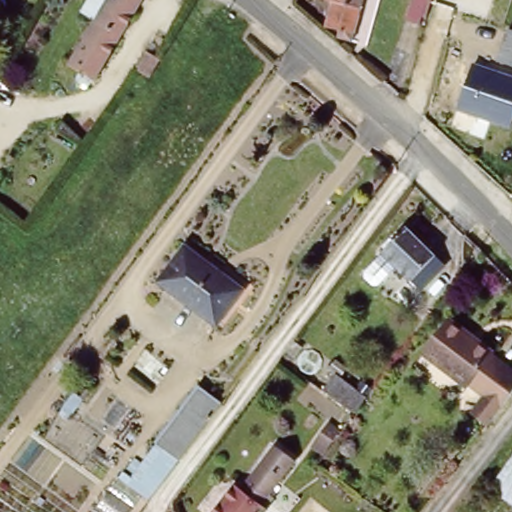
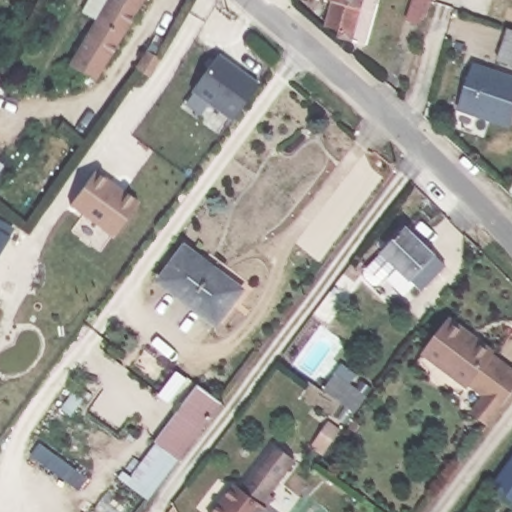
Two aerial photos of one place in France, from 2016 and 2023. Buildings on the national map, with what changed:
unchanged [(96,84),(69,69),(109,0),(146,0),(96,84)]
unchanged [(354,40),(337,35),(339,28),(328,24),(333,0),(363,0),(354,40)]
unchanged [(429,18),(422,17),(419,25),(405,20),(410,0),(434,0),(429,18)]
unchanged [(500,60),(510,27),(512,28),(512,64),(500,60)]
unchanged [(141,71),(135,67),(147,50),(160,58),(148,77),(141,71)]
new [(230,119),(192,90),(219,54),(257,83),(230,119)]
unchanged [(460,101),(472,62),(512,76),(512,120),(511,125),(472,113),(457,108),(460,101)]
new [(111,235),(69,205),(95,170),(137,200),(111,235)]
unchanged [(417,290),(376,251),(401,225),(442,265),(417,290)]
unchanged [(216,275),(232,288),(206,323),(150,281),(177,246),(194,259),(216,275)]
unchanged [(491,422),(474,410),(487,392),(472,380),(468,384),(425,352),(450,318),(493,351),(491,355),(512,372),(512,394),(491,422)]
unchanged [(324,388),(336,372),(369,397),(357,412),(324,388)]
unchanged [(145,475),(147,471),(143,468),(160,445),(156,442),(199,383),(222,402),(205,426),(160,487),(145,475)]
unchanged [(262,503),(255,512),(205,512),(232,478),(237,482),(272,440),(291,454),(256,497),(262,503)]
unchanged [(485,487),(512,448),(512,506),(485,487)]

